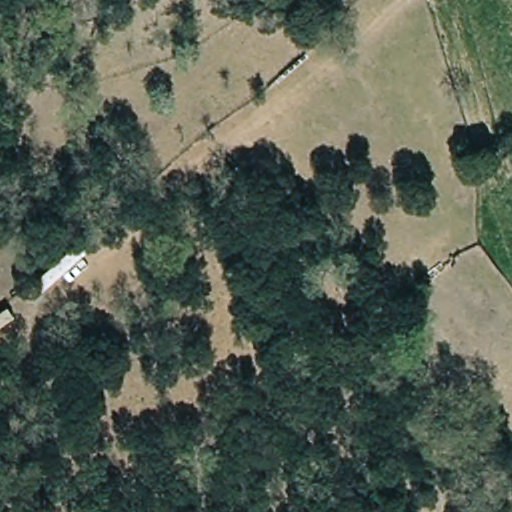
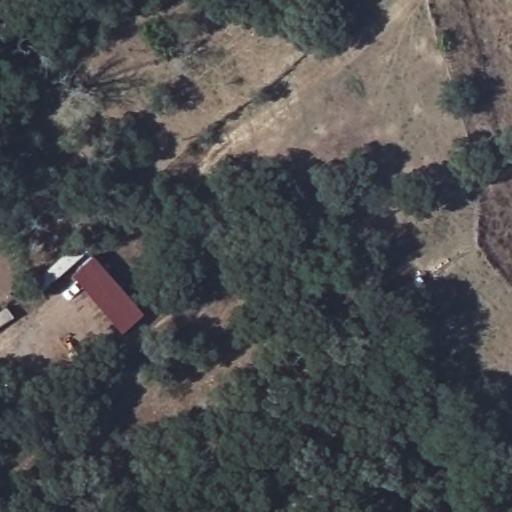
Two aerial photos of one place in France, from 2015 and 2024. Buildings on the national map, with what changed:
new [(72,273),(93,254),(143,313),(123,331),(72,273)]

